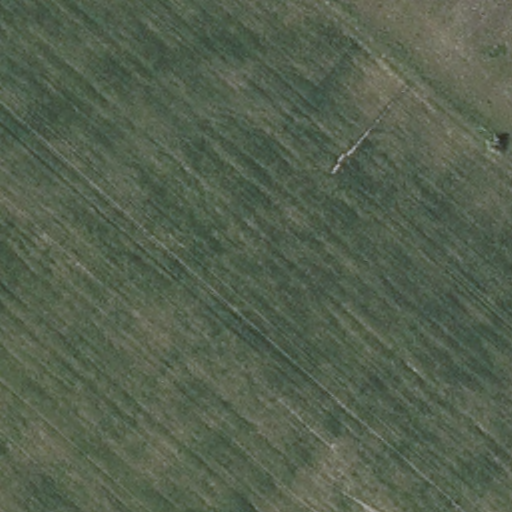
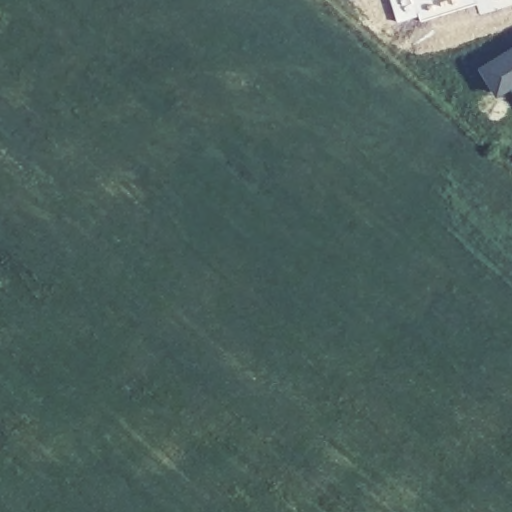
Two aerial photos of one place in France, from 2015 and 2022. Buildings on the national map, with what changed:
new [(476,5),(420,23),(419,16),(398,23),(390,0),(512,0),(512,6),(480,16),(476,5)]
new [(512,91),(497,101),(480,69),(512,49),(512,91)]

